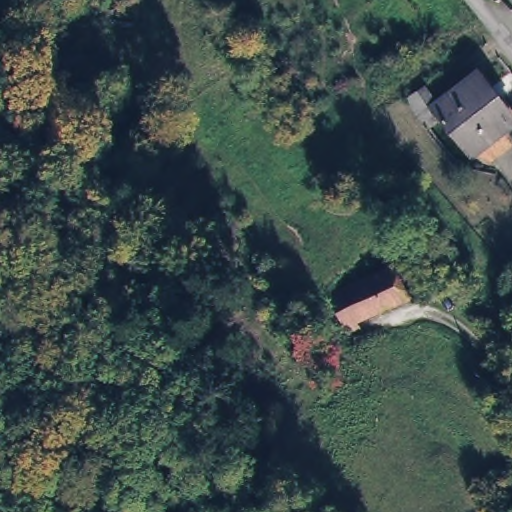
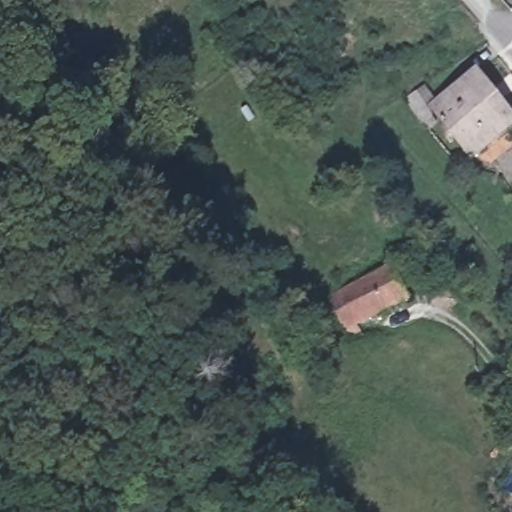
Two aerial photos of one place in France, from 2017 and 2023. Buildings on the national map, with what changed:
unchanged [(512,108),(512,110),(471,142),(436,99),(478,65),(512,108)]
unchanged [(383,215),(389,225),(381,229),(374,222),(383,215)]
unchanged [(427,278),(413,257),(437,243),(452,264),(439,271),(427,278)]
unchanged [(370,311),(369,306),(353,314),(359,327),(346,333),(325,287),(389,256),(404,288),(376,302),(379,307),(370,311)]
unchanged [(512,477),(512,492),(506,488),(512,477)]

